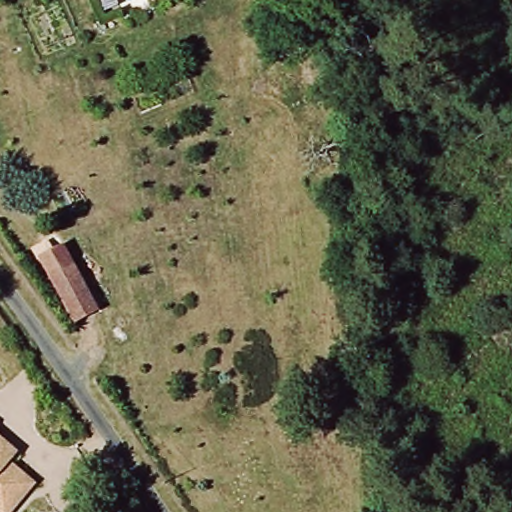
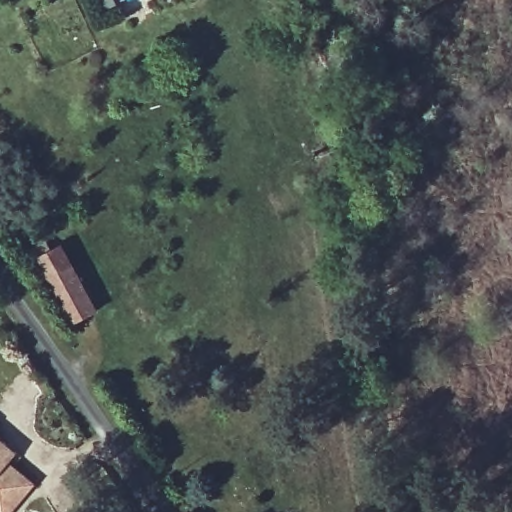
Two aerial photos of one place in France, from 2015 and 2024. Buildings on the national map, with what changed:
unchanged [(71,325),(39,259),(62,247),(95,312),(71,325)]
unchanged [(2,449),(13,458),(5,467),(28,487),(31,489),(11,512),(0,512),(0,447),(2,449)]

